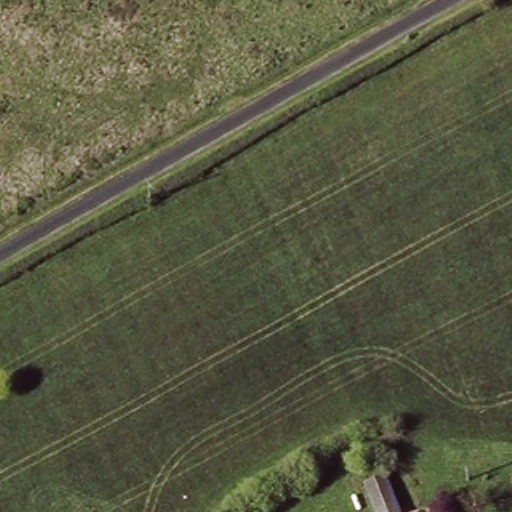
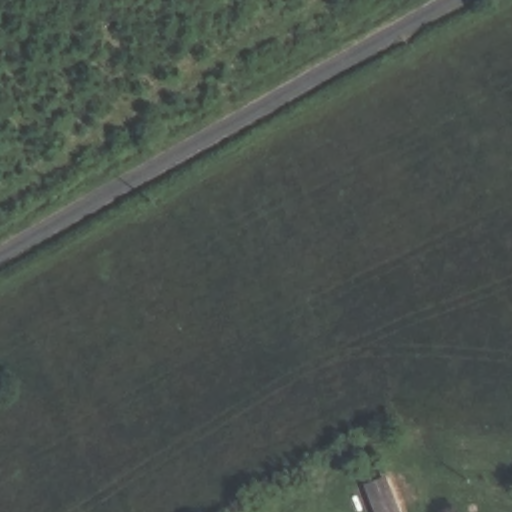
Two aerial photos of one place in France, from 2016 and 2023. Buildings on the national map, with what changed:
unchanged [(352,490),(376,478),(395,512),(362,512),(352,490)]

